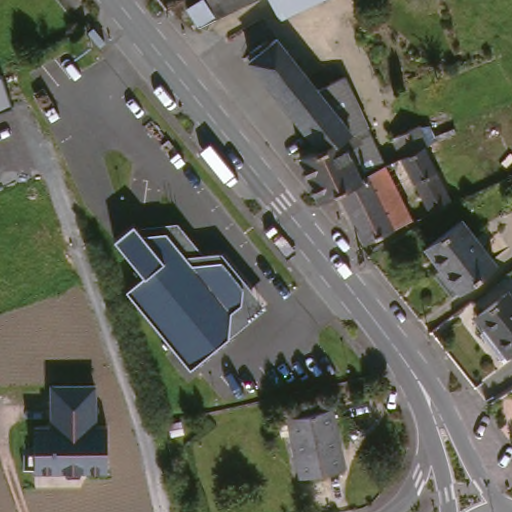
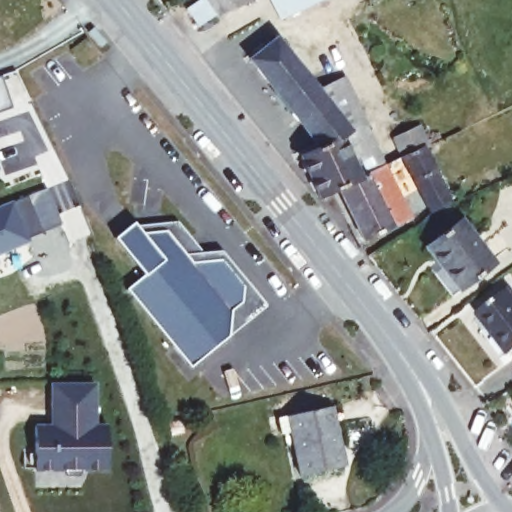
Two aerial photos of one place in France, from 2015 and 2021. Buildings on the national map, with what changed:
unchanged [(242,6),(211,24),(210,20),(189,31),(180,17),(212,0),(256,0),(244,7),(242,6)]
unchanged [(272,25),(260,0),(317,0),(272,25)]
unchanged [(305,132),(250,64),(277,42),(297,69),(305,82),(334,67),(342,83),(355,106),(367,130),(319,152),(305,132)]
unchanged [(11,107),(0,111),(0,77),(1,76),(11,107)]
unchanged [(299,162),(319,152),(367,130),(375,150),(385,171),(336,194),(320,202),(299,162)]
unchanged [(442,233),(411,179),(400,160),(436,140),(446,158),(433,166),(463,220),(442,233)]
unchanged [(408,222),(363,245),(336,194),(385,171),(408,222)]
new [(30,237),(32,242),(0,255),(0,206),(14,201),(14,202),(28,196),(44,231),(30,237)]
unchanged [(135,277),(145,269),(117,231),(136,216),(145,227),(170,226),(194,257),(224,255),(245,282),(247,294),(237,302),(236,326),(197,357),(135,277)]
unchanged [(453,290),(425,244),(442,233),(463,220),(491,267),(453,290)]
unchanged [(490,357),(474,331),(482,325),(473,313),(506,291),(512,299),(512,343),(490,357)]
unchanged [(36,469),(34,423),(51,424),(52,381),(98,380),(99,423),(109,422),(108,470),(36,469)]
unchanged [(346,466),(303,477),(287,418),(330,409),(346,466)]

